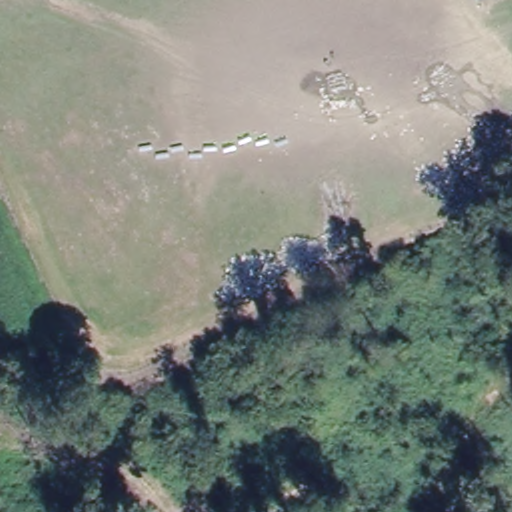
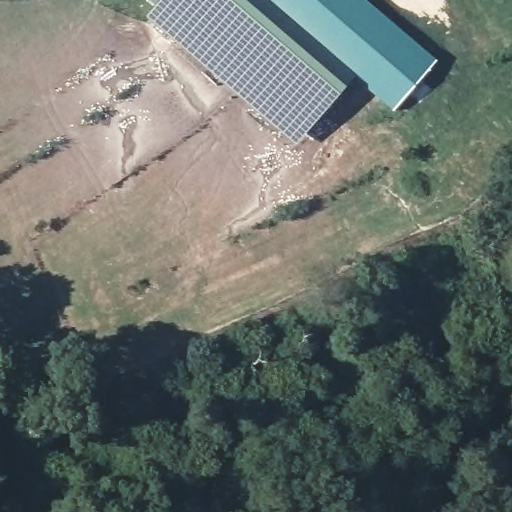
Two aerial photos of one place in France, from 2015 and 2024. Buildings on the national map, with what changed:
new [(161,0),(262,0),(353,78),(295,146),(146,17),(161,0)]
new [(393,112),(262,0),(367,0),(437,60),(393,112)]

